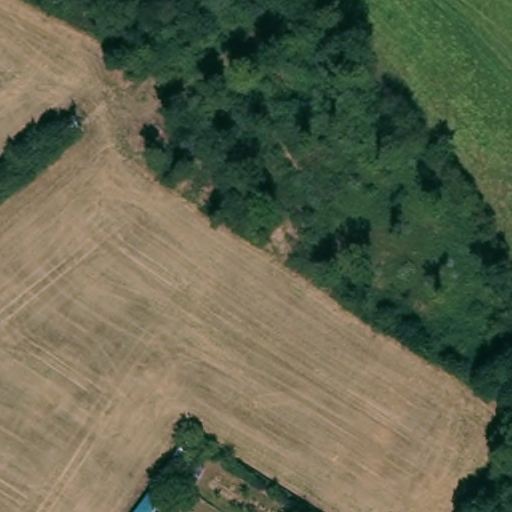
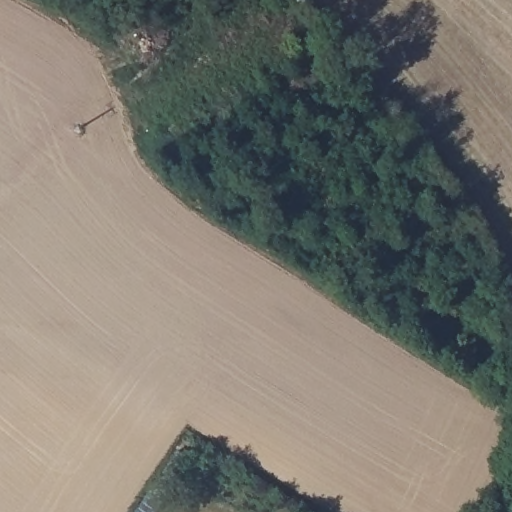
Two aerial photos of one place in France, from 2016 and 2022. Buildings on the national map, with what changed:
unchanged [(152,512),(130,512),(173,450),(187,462),(152,512)]

